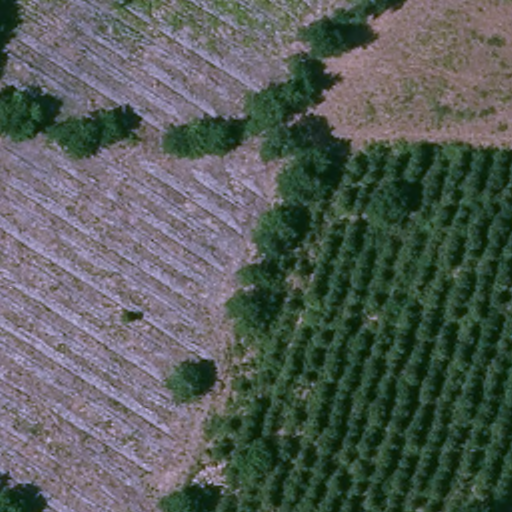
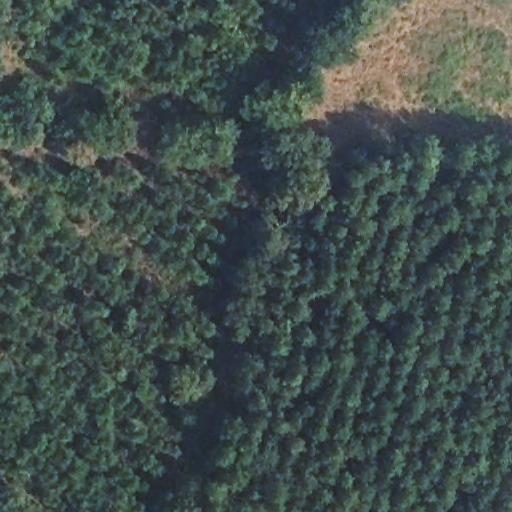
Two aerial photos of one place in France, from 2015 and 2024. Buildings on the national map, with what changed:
[]

